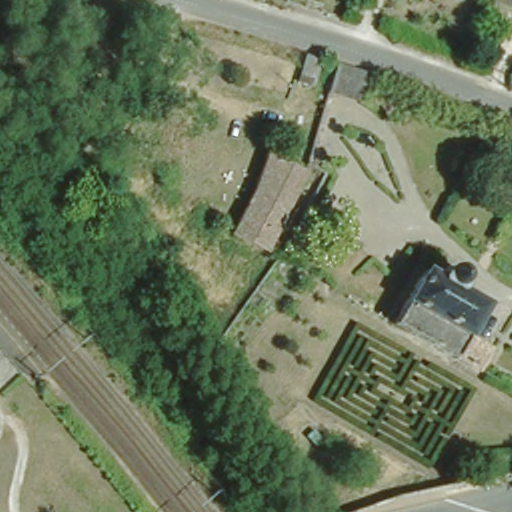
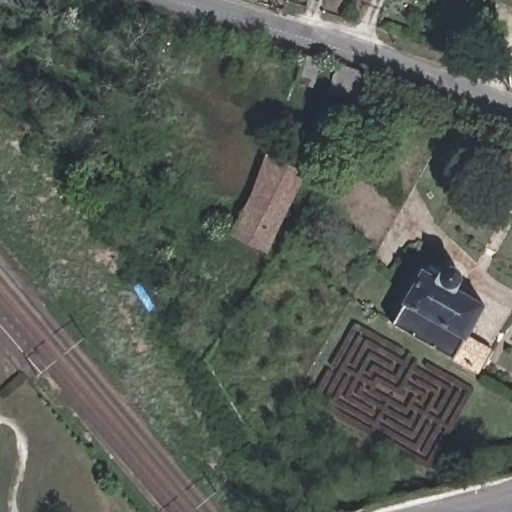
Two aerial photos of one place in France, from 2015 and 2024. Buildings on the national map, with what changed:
unchanged [(323,54),(312,82),(300,77),(310,49),(323,54)]
unchanged [(356,66),(372,71),(361,99),(328,87),(339,60),(356,66)]
unchanged [(306,173),(265,247),(232,230),(255,185),(267,151),(306,173)]
unchanged [(416,263),(423,267),(430,258),(438,258),(446,263),(450,272),(448,280),(477,297),(460,325),(487,341),(473,363),(387,311),(416,263)]

